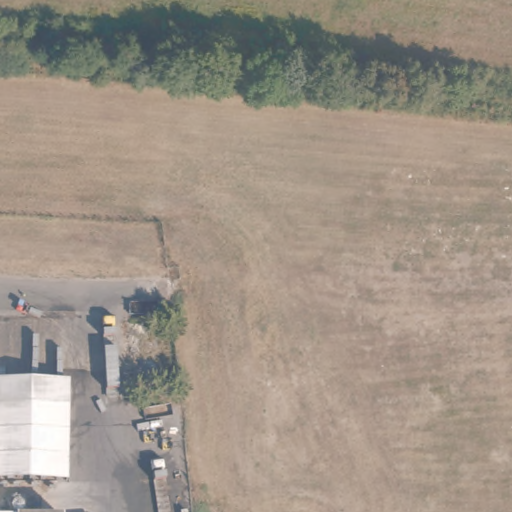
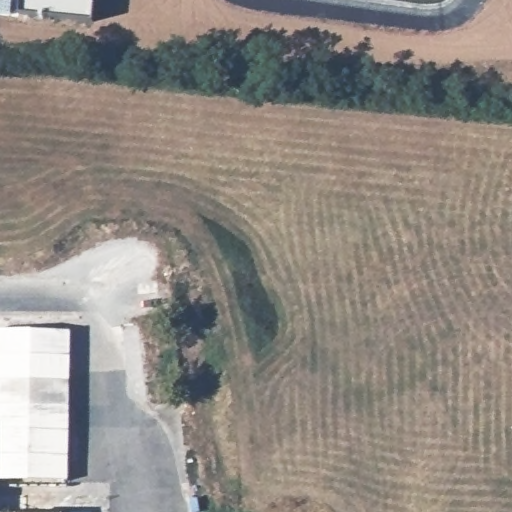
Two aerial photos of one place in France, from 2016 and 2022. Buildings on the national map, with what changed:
new [(69,380),(0,379),(0,329),(71,330),(69,380)]
unchanged [(66,480),(0,480),(0,379),(69,380),(66,480)]

